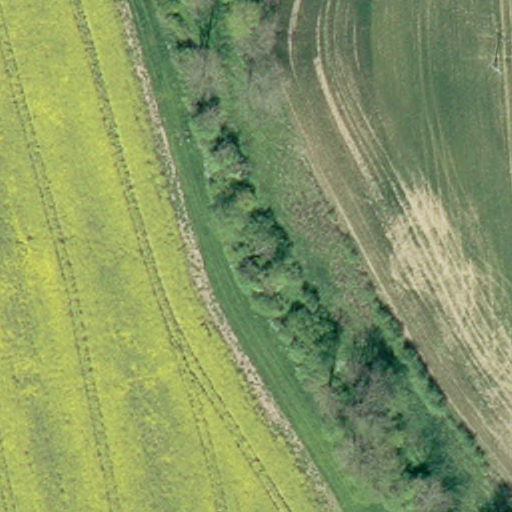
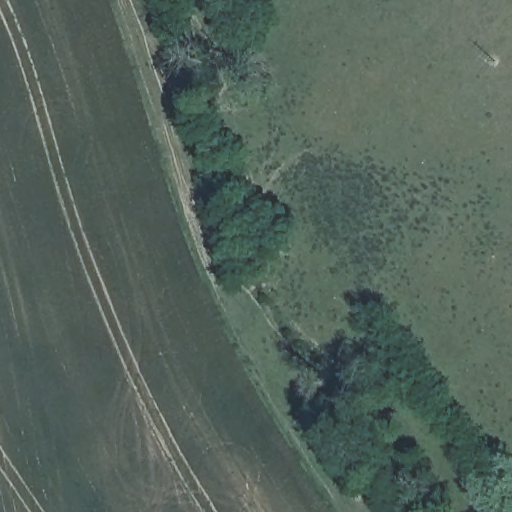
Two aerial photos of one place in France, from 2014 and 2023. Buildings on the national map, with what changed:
[]

